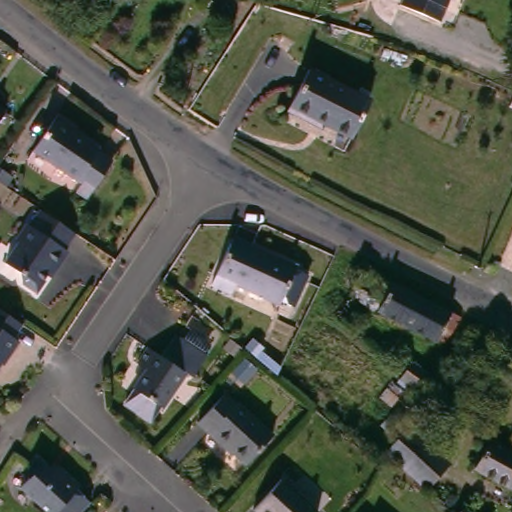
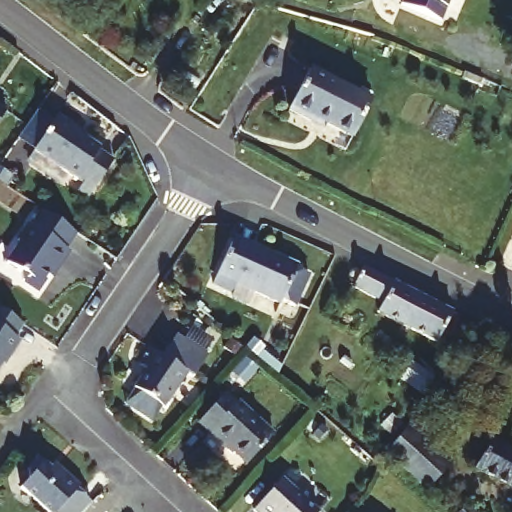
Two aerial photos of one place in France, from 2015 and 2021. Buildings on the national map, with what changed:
unchanged [(407,0),(452,0),(445,19),(406,2),(407,0)]
unchanged [(375,100),(356,136),(316,118),(313,121),(292,112),(314,70),(375,100)]
unchanged [(0,124),(0,101),(10,109),(0,124)]
unchanged [(64,112),(87,128),(84,134),(115,155),(86,194),(74,185),(78,180),(35,151),(64,112)]
unchanged [(10,190),(0,183),(0,173),(4,168),(19,177),(10,190)]
unchanged [(66,251),(70,254),(60,269),(55,266),(38,292),(24,282),(22,275),(8,265),(22,244),(19,242),(30,226),(33,229),(44,212),(76,235),(66,251)]
unchanged [(303,265),(285,302),(251,286),(242,292),(216,280),(238,235),(303,265)]
unchanged [(420,293),(405,325),(382,313),(387,302),(357,287),(366,266),(420,293)]
unchanged [(452,343),(443,340),(441,342),(405,325),(420,293),(428,297),(465,316),(452,343)]
unchanged [(16,340),(29,348),(19,362),(14,358),(0,378),(0,307),(27,325),(16,340)]
unchanged [(169,350),(184,330),(214,353),(199,374),(194,370),(164,408),(135,387),(151,365),(144,359),(156,341),(169,350)]
unchanged [(432,376),(420,395),(400,380),(411,362),(432,376)]
unchanged [(201,423),(227,392),(275,434),(250,465),(201,423)]
unchanged [(450,466),(426,491),(386,453),(405,425),(450,466)]
unchanged [(480,471),(495,438),(512,448),(512,488),(480,471)]
unchanged [(82,485),(79,488),(94,501),(84,512),(50,512),(22,487),(30,478),(30,467),(40,456),(55,470),(60,465),(82,485)]
unchanged [(324,504),(317,512),(269,512),(260,505),(287,473),(324,504)]
unchanged [(474,512),(461,512),(468,506),(474,512)]

